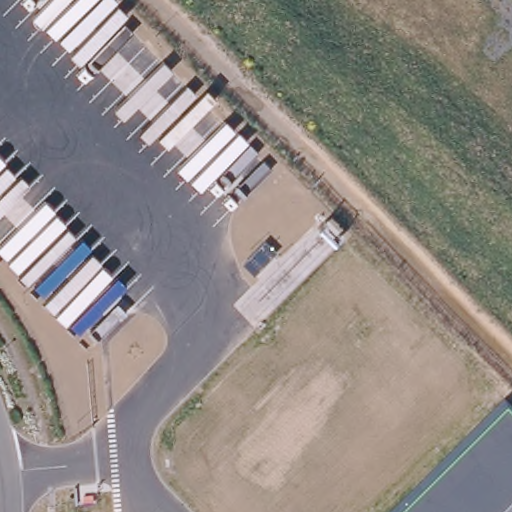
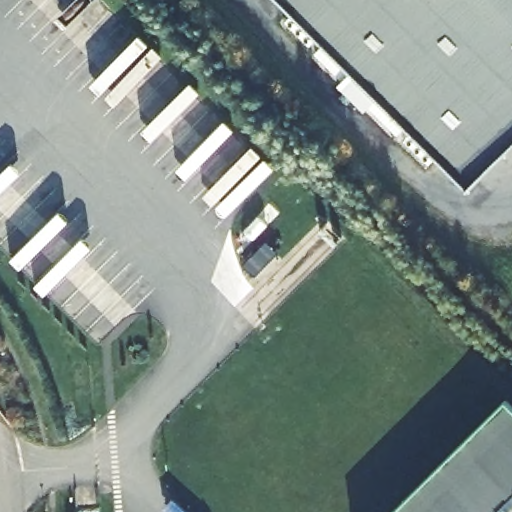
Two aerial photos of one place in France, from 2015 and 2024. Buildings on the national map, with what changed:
new [(512,0),(512,140),(468,183),(286,0),(512,0)]
unchanged [(512,408),(512,512),(393,512),(505,401),(512,408)]

